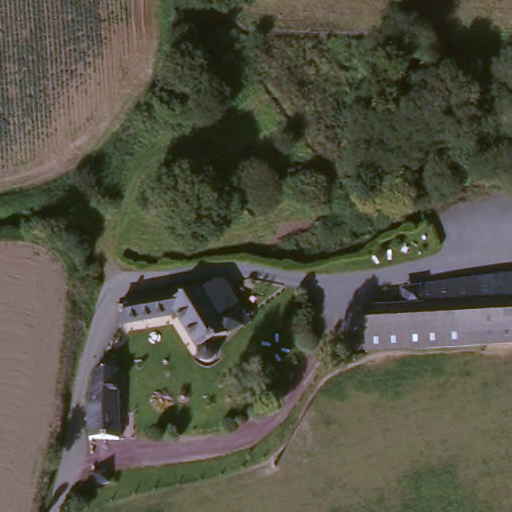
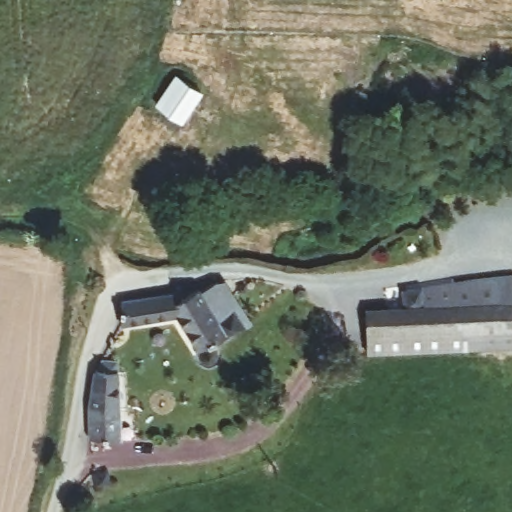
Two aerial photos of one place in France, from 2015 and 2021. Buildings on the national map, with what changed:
new [(176,80),(199,96),(179,126),(156,108),(176,80)]
unchanged [(426,283),(500,273),(502,299),(512,299),(512,341),(372,348),(371,305),(429,303),(426,283)]
unchanged [(176,289),(176,286),(186,281),(191,289),(203,283),(204,285),(221,277),(243,312),(227,322),(233,330),(218,337),(219,341),(221,344),(222,347),(222,349),(221,352),(219,355),(216,356),(213,358),(209,357),(207,356),(204,353),(203,351),(203,347),(203,344),(179,308),(175,311),(125,319),(126,296),(176,289)]
unchanged [(129,440),(99,439),(99,408),(104,370),(107,370),(111,360),(127,360),(129,440)]

